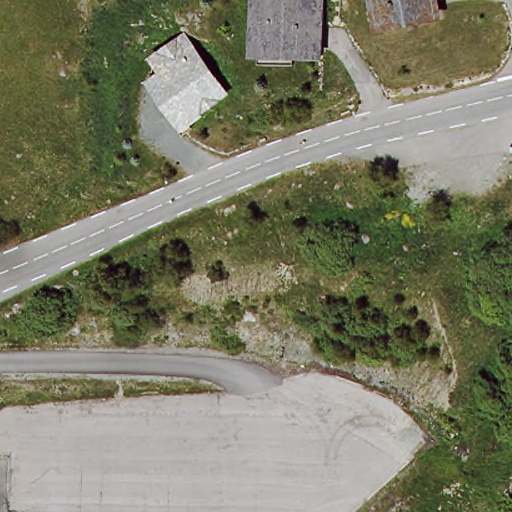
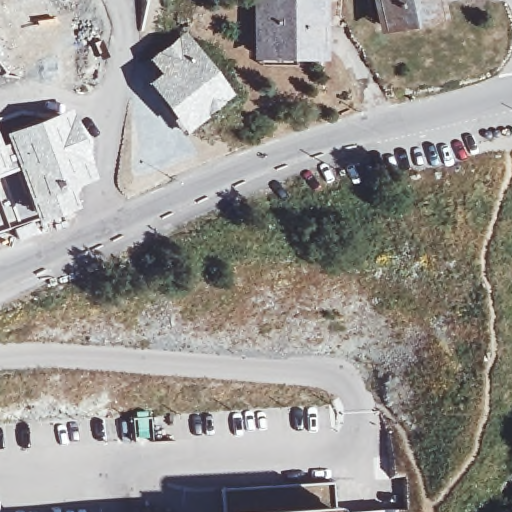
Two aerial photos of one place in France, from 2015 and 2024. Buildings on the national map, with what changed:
unchanged [(379,24),(374,0),(432,0),(435,14),(379,24)]
unchanged [(260,49),(262,1),(320,3),(318,57),(295,56),(260,55),(260,49)]
unchanged [(225,94),(187,123),(160,86),(172,78),(160,61),(187,42),(225,94)]
new [(9,204),(24,198),(13,169),(3,140),(0,131),(70,105),(85,139),(95,177),(67,187),(74,207),(32,220),(30,215),(4,224),(0,212),(0,204),(7,201),(9,204)]
new [(13,169),(0,174),(0,142),(3,140),(13,169)]
new [(0,225),(0,212),(4,224),(0,225)]
new [(219,490),(332,484),(334,508),(334,512),(219,512),(219,490)]

